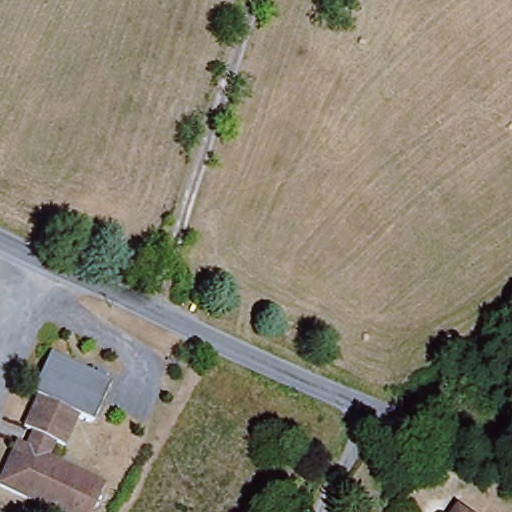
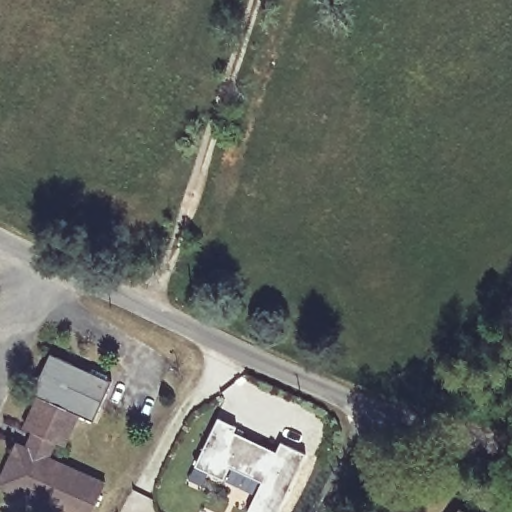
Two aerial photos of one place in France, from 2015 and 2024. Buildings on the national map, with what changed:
unchanged [(56,355),(116,385),(97,423),(82,416),(69,443),(61,439),(52,457),(109,482),(95,512),(61,512),(2,486),(21,445),(32,450),(39,434),(29,429),(43,397),(37,394),(56,355)]
new [(262,482),(232,467),(225,481),(196,467),(219,418),(237,427),(235,433),(276,452),(280,443),(305,456),(279,512),(249,512),(262,482)]

